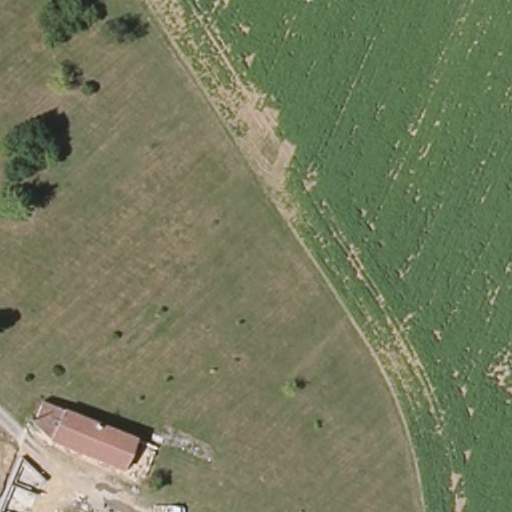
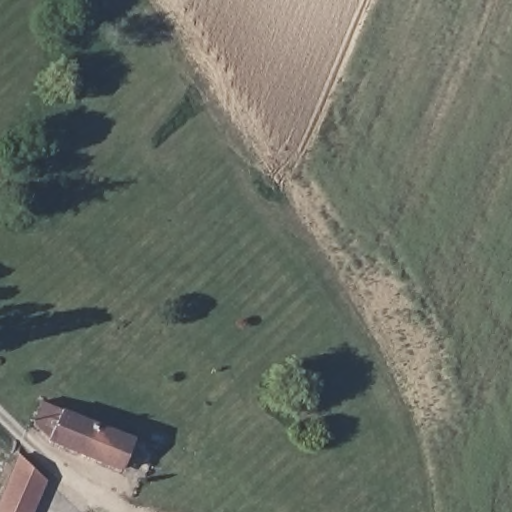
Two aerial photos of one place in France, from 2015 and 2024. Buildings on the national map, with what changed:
unchanged [(133,442),(117,470),(54,437),(36,417),(48,394),(133,442)]
new [(34,512),(0,512),(0,500),(20,453),(47,480),(34,512)]

